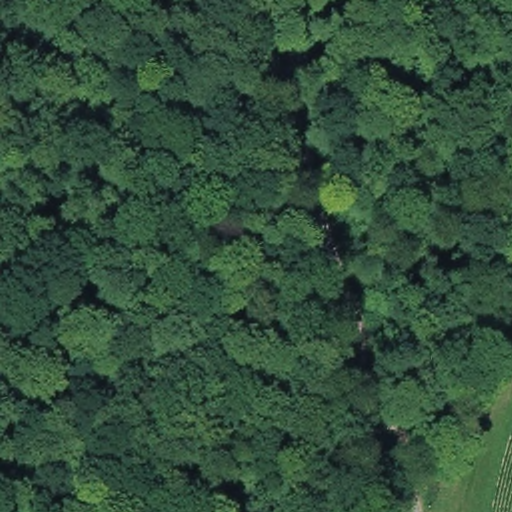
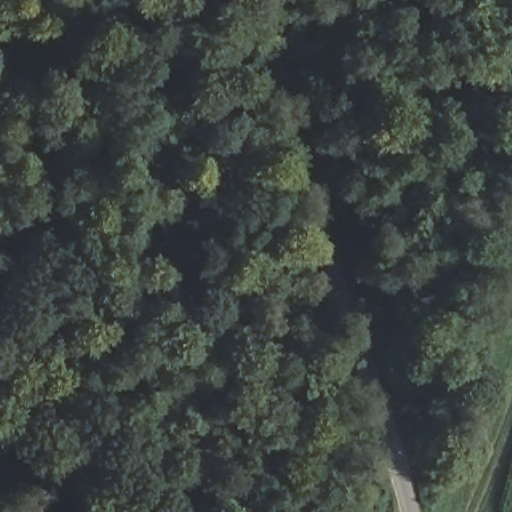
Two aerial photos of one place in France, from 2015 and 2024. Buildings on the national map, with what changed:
unchanged [(512,46),(512,163),(457,150),(485,35),(512,46)]
unchanged [(498,250),(475,350),(425,341),(448,235),(498,250)]

